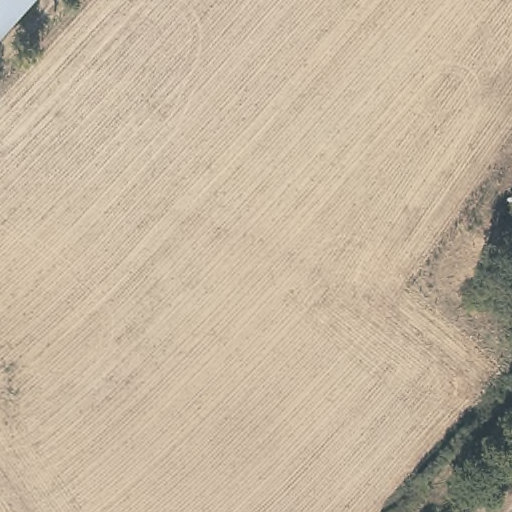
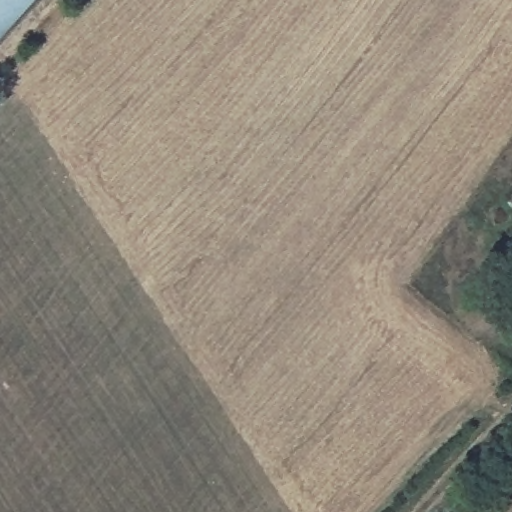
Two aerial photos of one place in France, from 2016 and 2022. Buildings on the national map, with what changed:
unchanged [(0,0),(27,0),(0,29),(0,0)]

